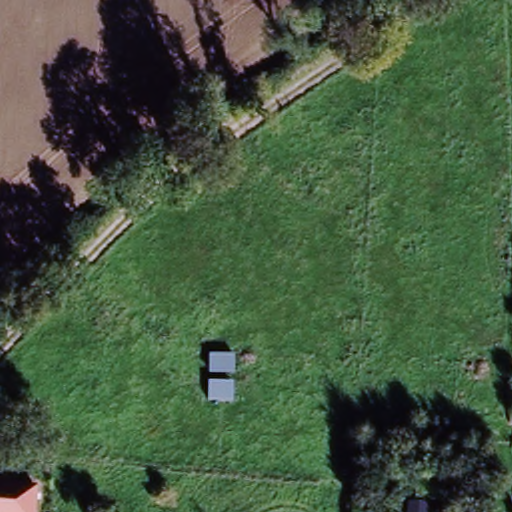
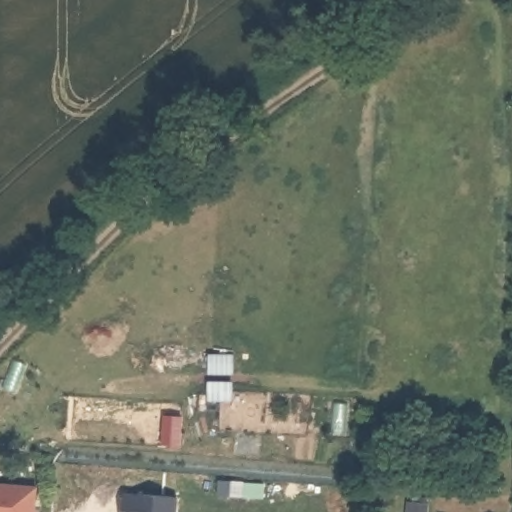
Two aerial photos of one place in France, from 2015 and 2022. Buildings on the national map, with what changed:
unchanged [(0,512),(0,483),(37,486),(36,512),(0,512)]
new [(178,512),(123,512),(124,494),(179,498),(178,512)]

